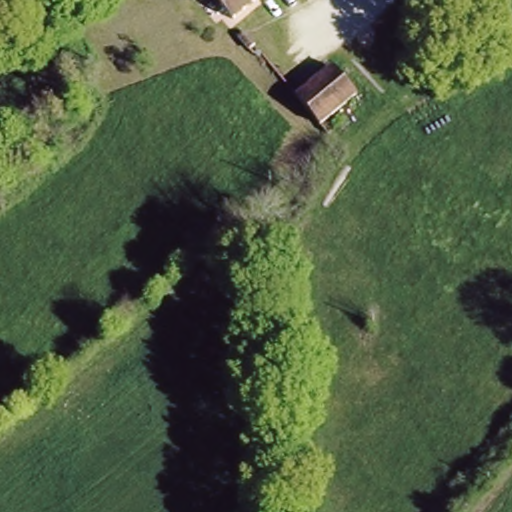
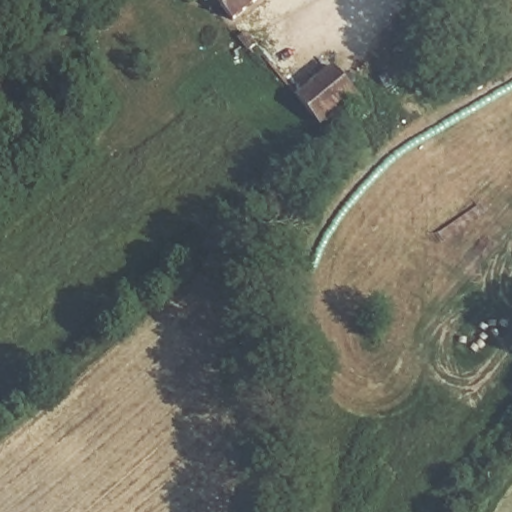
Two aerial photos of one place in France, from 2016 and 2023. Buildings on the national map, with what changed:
unchanged [(216,0),(256,0),(233,18),(216,0)]
unchanged [(294,99),(339,62),(359,86),(314,122),(294,99)]

